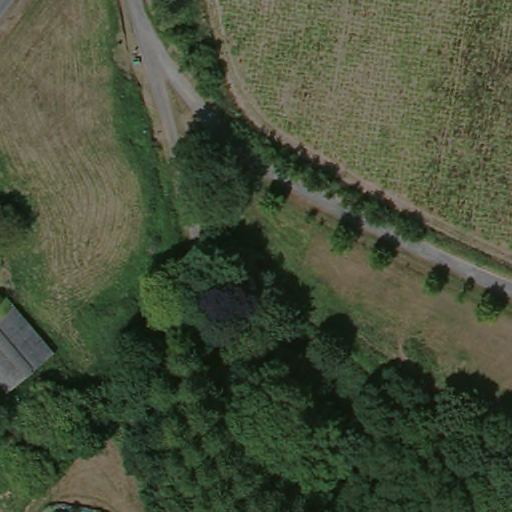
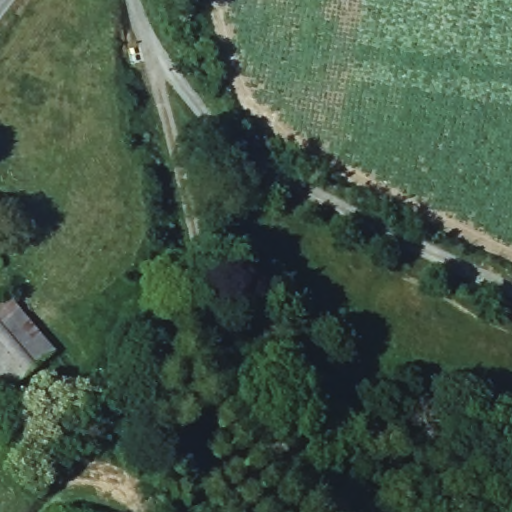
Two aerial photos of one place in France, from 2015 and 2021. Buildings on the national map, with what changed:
unchanged [(9,391),(0,380),(0,300),(10,291),(56,349),(9,391)]

